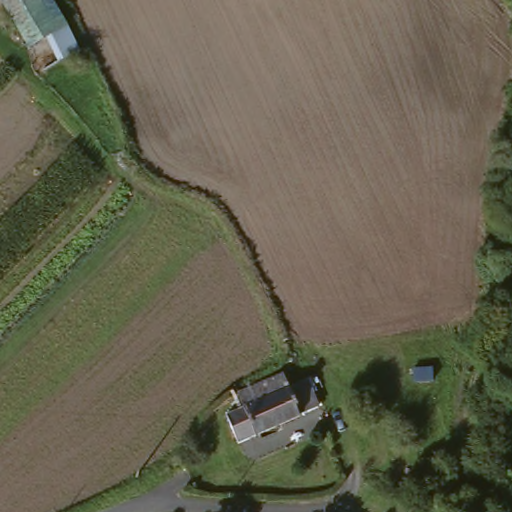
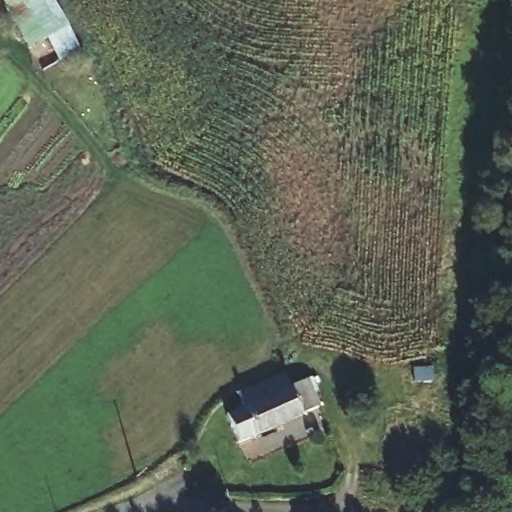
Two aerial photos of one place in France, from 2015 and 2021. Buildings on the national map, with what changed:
unchanged [(58,63),(44,39),(29,50),(1,0),(48,0),(76,51),(58,63)]
unchanged [(319,406),(241,437),(229,407),(244,400),(239,385),(282,369),(288,383),(307,376),(319,406)]

